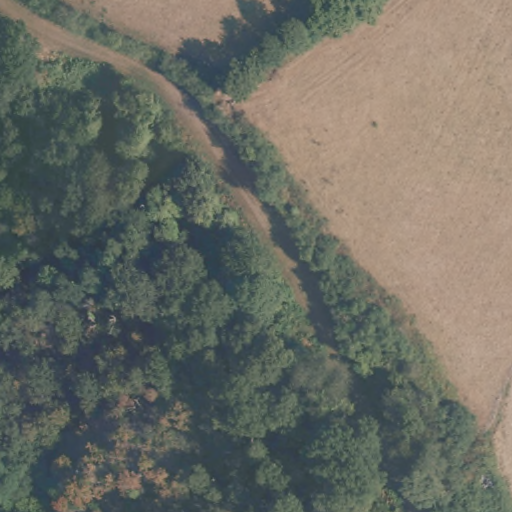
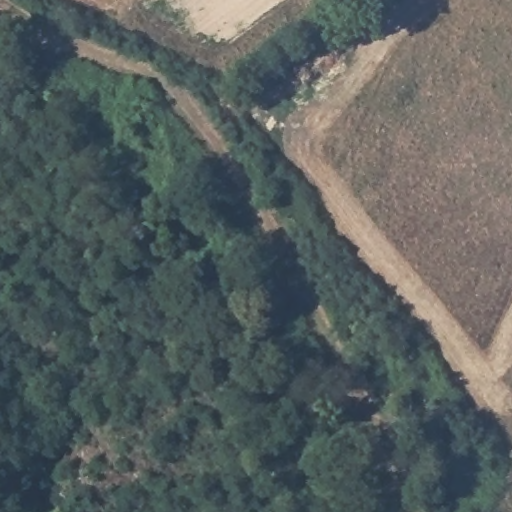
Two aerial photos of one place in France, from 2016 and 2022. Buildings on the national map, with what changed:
unchanged [(392,315),(377,328),(357,306),(374,292),(392,315)]

